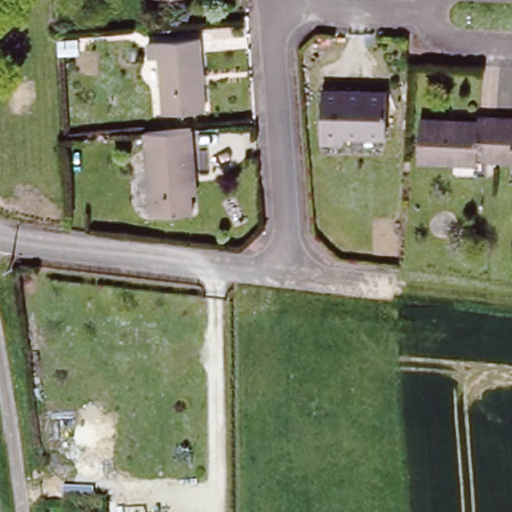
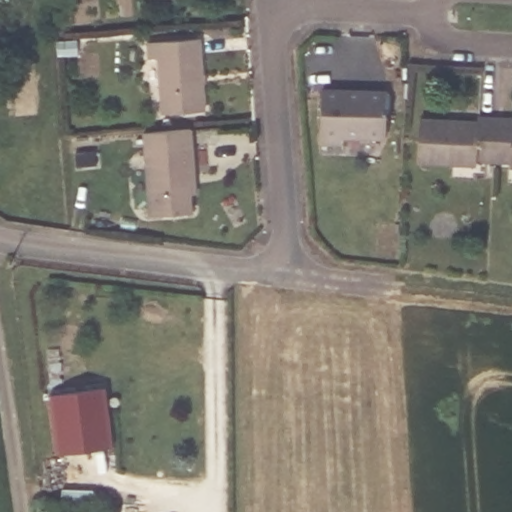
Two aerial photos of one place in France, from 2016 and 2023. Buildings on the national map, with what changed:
unchanged [(151,38),(196,34),(203,105),(164,108),(161,55),(150,55),(151,38)]
unchanged [(76,41),(78,55),(58,55),(58,42),(76,41)]
unchanged [(321,88),(384,88),(384,131),(343,131),(343,139),(321,139),(321,88)]
unchanged [(421,160),(422,119),(477,123),(478,118),(496,119),(512,119),(512,167),(509,167),(510,161),(473,159),(473,164),(420,163),(421,160)]
unchanged [(191,127),(194,173),(188,174),(190,210),(148,213),(142,130),(191,127)]
new [(105,386),(113,446),(58,453),(50,394),(105,386)]

